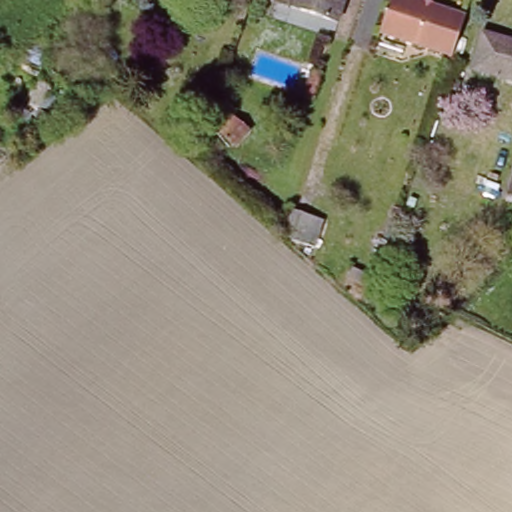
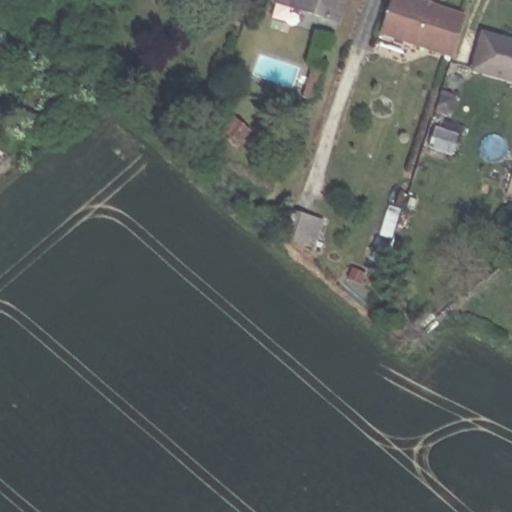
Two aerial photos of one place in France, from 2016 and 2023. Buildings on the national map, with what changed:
unchanged [(290,2),(285,0),(343,0),(337,18),(290,2)]
unchanged [(416,0),(462,15),(449,55),(376,30),(386,0),(416,0)]
unchanged [(512,78),(468,65),(477,31),(512,41),(512,78)]
unchanged [(311,70),(320,73),(311,101),(302,98),(311,70)]
unchanged [(222,136),(235,119),(247,129),(234,145),(222,136)]
unchanged [(512,167),(512,194),(504,191),(512,167)]
unchanged [(291,212),(320,221),(312,249),(282,240),(291,212)]

